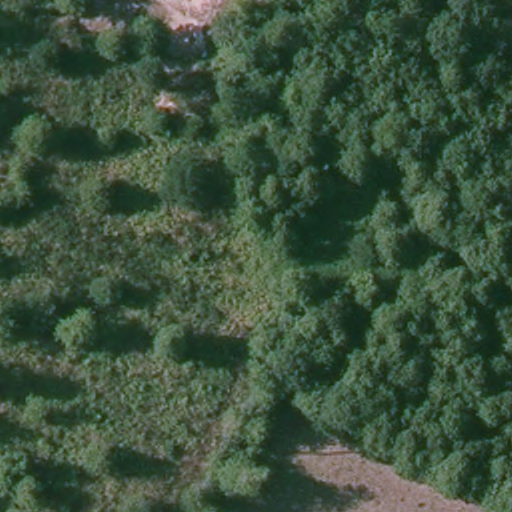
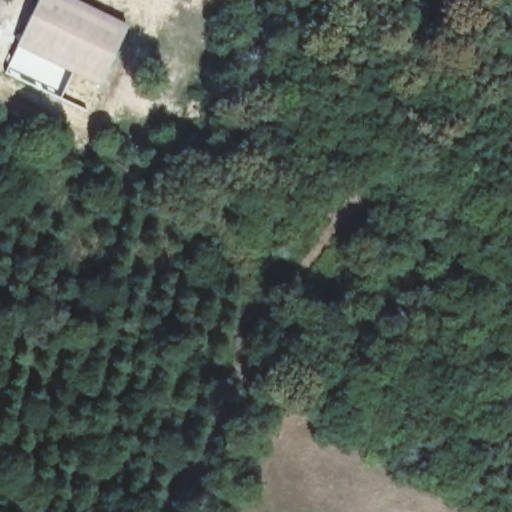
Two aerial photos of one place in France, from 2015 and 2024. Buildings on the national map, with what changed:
new [(100,85),(16,45),(38,0),(77,0),(129,26),(100,85)]

